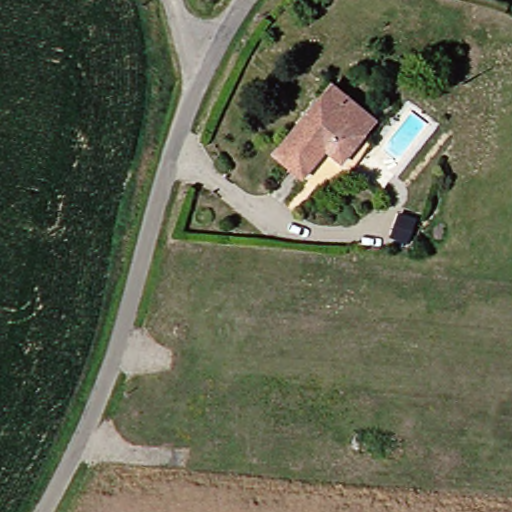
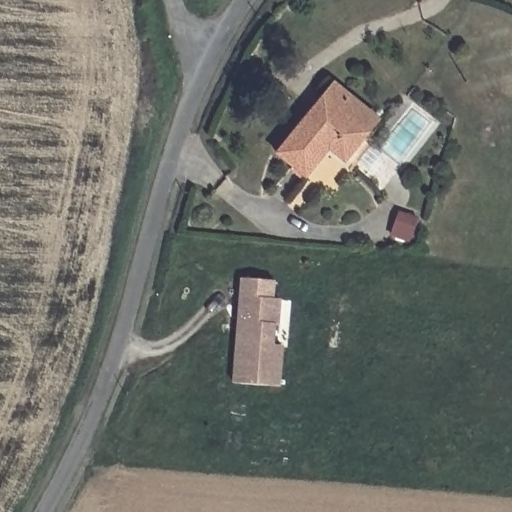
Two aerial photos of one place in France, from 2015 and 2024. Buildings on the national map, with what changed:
unchanged [(346,157),(332,146),(309,172),(281,149),(328,95),(371,132),(346,157)]
new [(275,283),(274,300),(281,301),(279,324),(276,324),(274,345),(283,346),(280,387),(231,383),(240,279),(275,283)]

